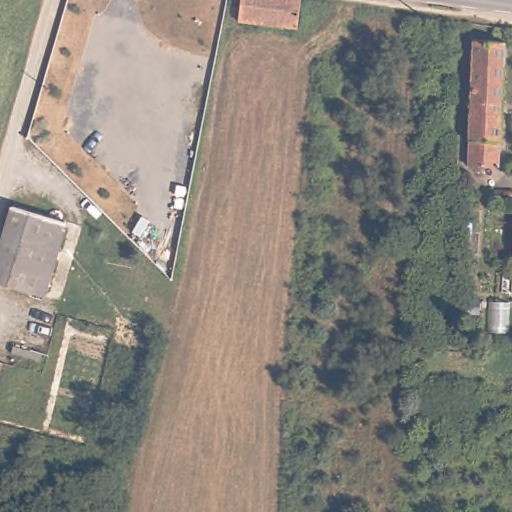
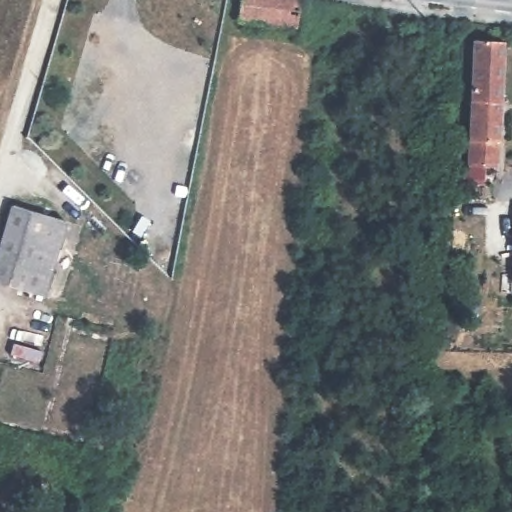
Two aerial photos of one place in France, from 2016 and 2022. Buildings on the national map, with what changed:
unchanged [(296,28),(239,20),(241,0),(300,0),(296,28)]
unchanged [(473,40),(504,42),(498,166),(466,165),(473,40)]
unchanged [(0,283),(0,247),(12,206),(64,222),(42,295),(0,283)]

